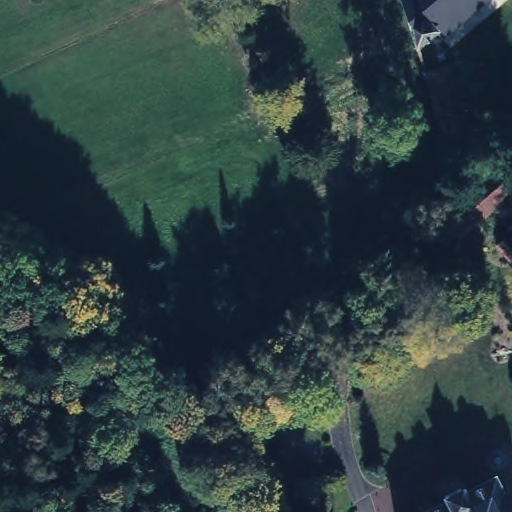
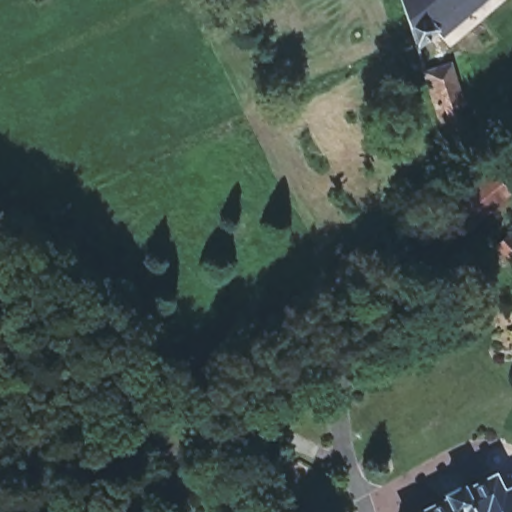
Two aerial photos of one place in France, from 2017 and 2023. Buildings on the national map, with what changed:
unchanged [(430,27),(432,32),(415,47),(398,0),(463,0),(430,27)]
unchanged [(472,135),(450,142),(426,67),(449,60),(472,135)]
unchanged [(512,171),(512,182),(462,231),(439,205),(497,155),(512,171)]
unchanged [(437,478),(434,471),(450,464),(455,469),(482,455),(492,472),(500,470),(512,494),(512,500),(505,502),(511,512),(392,512),(387,503),(437,478)]

